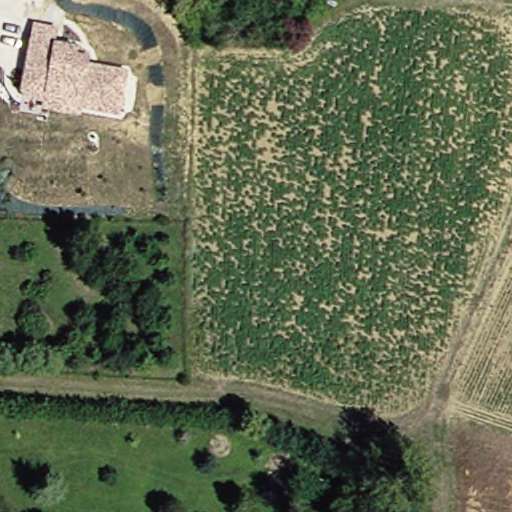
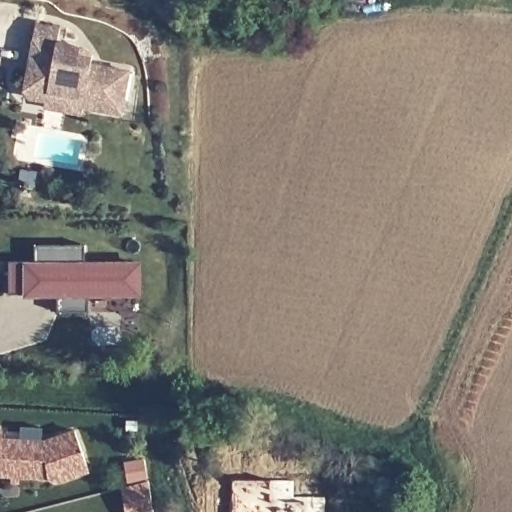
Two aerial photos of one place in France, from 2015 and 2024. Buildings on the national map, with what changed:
unchanged [(29,100),(22,93),(34,23),(62,28),(59,41),(93,47),(91,63),(129,70),(124,116),(85,109),(82,119),(42,111),(44,102),(29,100)]
new [(84,246),(85,267),(138,265),(139,294),(88,294),(89,312),(59,313),(58,294),(63,294),(63,286),(58,285),(52,281),(50,279),(48,274),(49,268),(35,269),(34,248),(84,246)]
new [(27,263),(27,295),(8,295),(7,263),(27,263)]
new [(0,475),(0,441),(18,441),(18,433),(41,434),(40,444),(73,432),(87,471),(54,483),(52,478),(18,476),(17,482),(9,482),(10,476),(0,475)]

